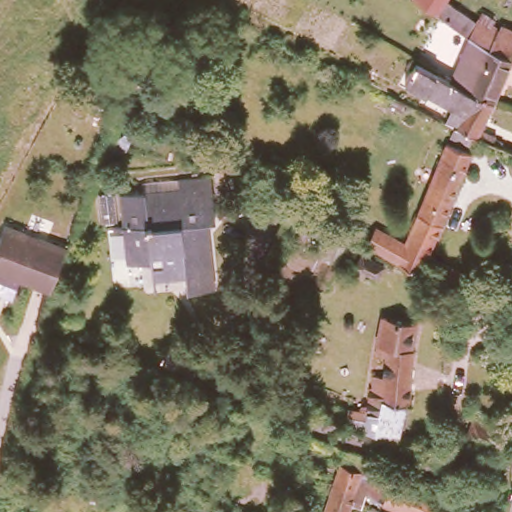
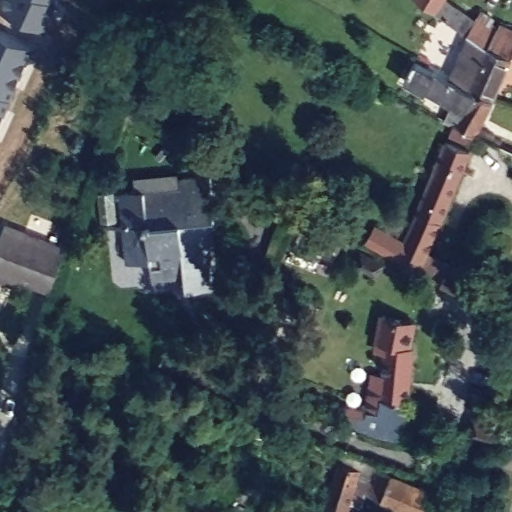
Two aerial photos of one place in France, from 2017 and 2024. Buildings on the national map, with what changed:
new [(59,0),(46,31),(0,9),(4,0),(59,0)]
unchanged [(479,10),(492,16),(490,24),(495,27),(512,35),(512,47),(509,55),(482,48),(465,36),(413,0),(445,0),(472,20),(479,10)]
new [(28,62),(27,61),(22,70),(24,71),(20,77),(19,77),(15,84),(17,85),(5,114),(4,113),(0,120),(0,32),(35,47),(28,62)]
unchanged [(489,98),(464,89),(445,79),(465,36),(482,48),(509,55),(489,98)]
unchanged [(509,55),(512,47),(512,56),(509,55)]
unchanged [(442,122),(449,107),(399,81),(405,69),(401,65),(405,59),(445,79),(464,89),(489,98),(475,126),(490,134),(487,140),(472,134),(470,135),(465,144),(445,135),(449,125),(442,122)]
new [(0,124),(0,122),(1,122),(0,124)]
unchanged [(465,150),(459,165),(465,169),(462,174),(456,172),(414,272),(392,261),(362,245),(370,229),(400,244),(442,141),(465,150)]
unchanged [(172,189),(172,179),(205,175),(210,219),(200,220),(206,287),(181,290),(180,274),(146,277),(145,261),(124,263),(120,226),(142,225),(139,191),(172,189)]
unchanged [(0,226),(62,248),(45,290),(16,280),(13,286),(0,281),(0,226)]
demolished [(377,263),(370,275),(350,265),(356,252),(377,263)]
unchanged [(335,260),(325,286),(312,281),(321,255),(335,260)]
unchanged [(451,266),(472,276),(464,295),(442,284),(451,266)]
unchanged [(351,320),(352,321),(352,323),(351,325),(350,326),(347,327),(345,326),(344,325),(343,323),(343,321),(344,319),(346,318),(348,317),(350,318),(351,320)]
unchanged [(368,370),(377,370),(380,337),(407,342),(402,399),(399,399),(393,433),(359,427),(368,370)]
unchanged [(340,464),(360,470),(347,512),(325,512),(340,464)]
unchanged [(431,492),(433,512),(411,512),(382,501),(390,476),(431,492)]

